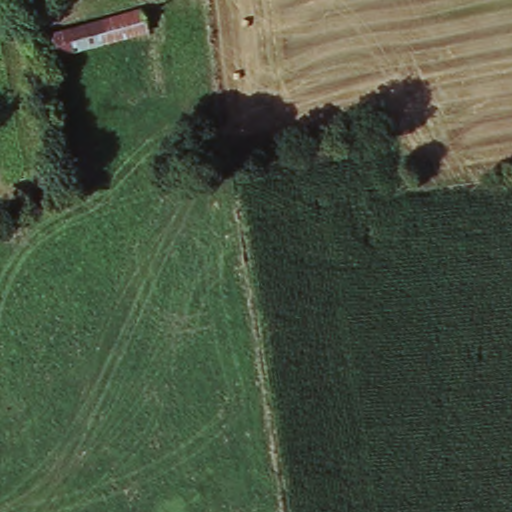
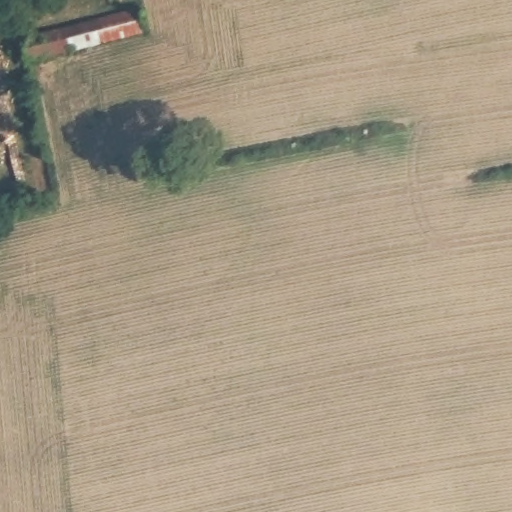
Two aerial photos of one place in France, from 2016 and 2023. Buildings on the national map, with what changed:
unchanged [(145,6),(151,28),(37,63),(30,42),(145,6)]

